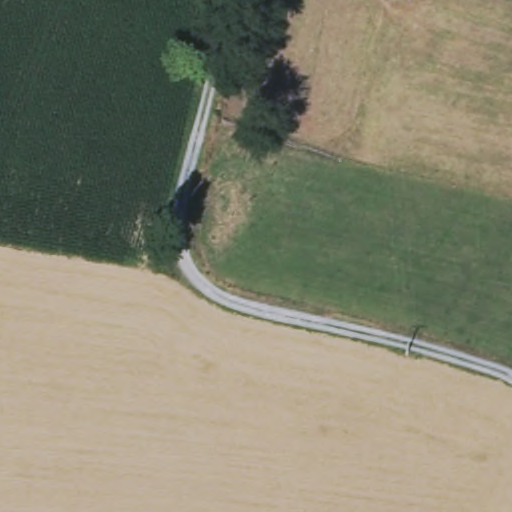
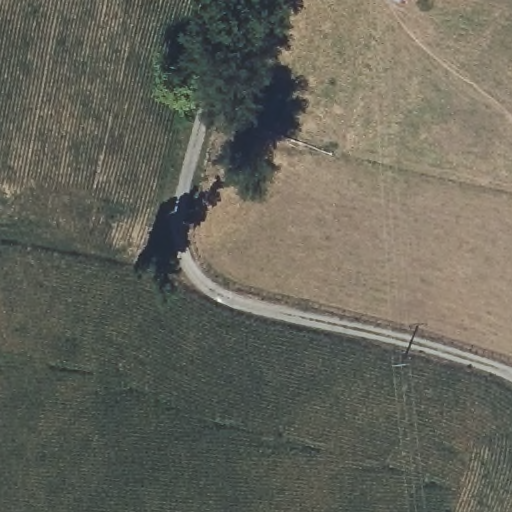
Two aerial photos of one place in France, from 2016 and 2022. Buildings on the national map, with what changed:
unchanged [(409,3),(398,0),(410,0),(409,3)]

